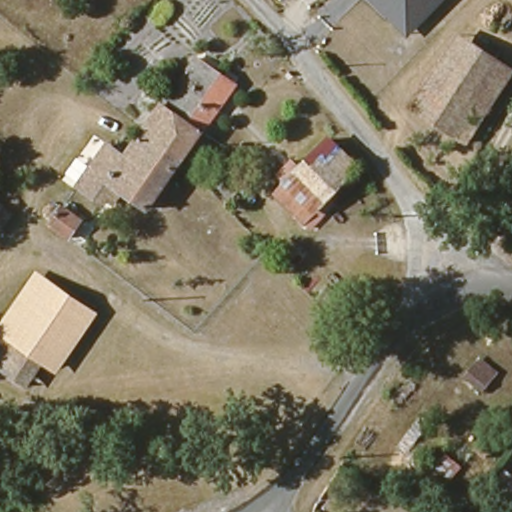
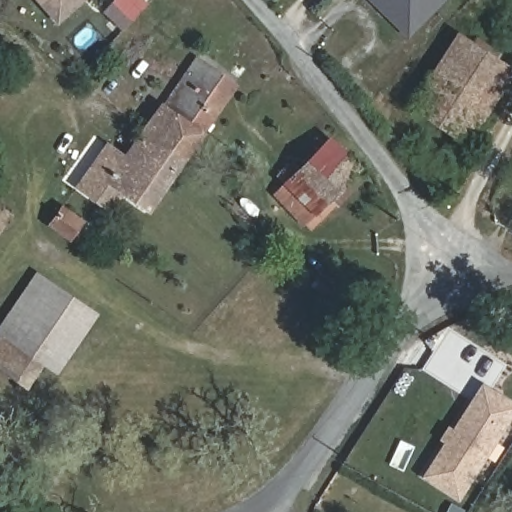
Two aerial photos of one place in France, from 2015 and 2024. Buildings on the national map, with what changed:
new [(58,25),(36,0),(86,0),(58,25)]
unchanged [(407,39),(370,0),(446,0),(407,39)]
unchanged [(413,109),(461,40),(476,50),(428,119),(413,109)]
unchanged [(476,50),(512,75),(466,144),(428,119),(476,50)]
unchanged [(157,132),(208,59),(221,68),(243,84),(233,97),(192,157),(157,132)]
unchanged [(192,157),(157,207),(125,185),(112,203),(87,185),(116,144),(137,159),(157,132),(192,157)]
unchanged [(307,161),(336,132),(365,161),(360,168),(370,176),(346,201),(337,191),(307,161)]
unchanged [(308,220),(279,190),(307,161),(337,191),(308,220)]
unchanged [(51,224),(54,220),(42,211),(49,204),(59,213),(64,206),(79,219),(66,235),(51,224)]
unchanged [(10,214),(0,226),(0,207),(10,214)]
unchanged [(333,281),(346,265),(383,297),(371,312),(333,281)]
unchanged [(30,380),(0,358),(0,345),(52,274),(89,300),(49,355),(30,380)]
unchanged [(319,298),(329,287),(356,310),(345,321),(319,298)]
unchanged [(89,300),(102,311),(63,365),(49,355),(89,300)]
new [(484,405),(493,390),(512,402),(512,418),(461,495),(428,473),(477,400),(484,405)]

